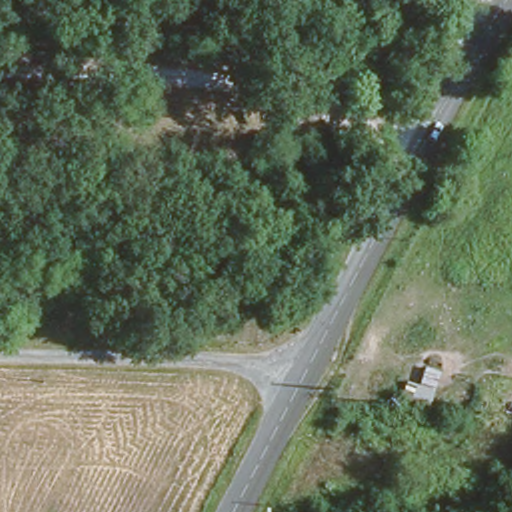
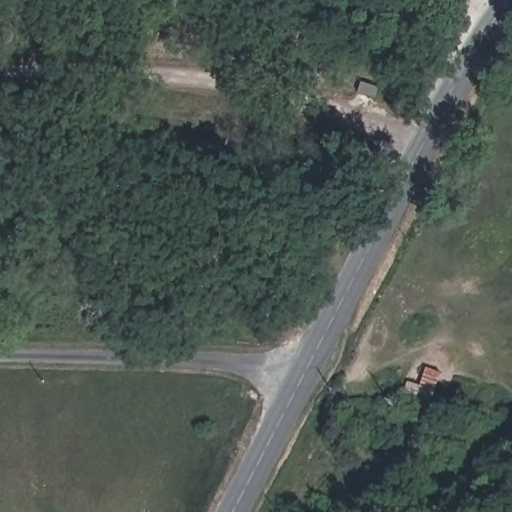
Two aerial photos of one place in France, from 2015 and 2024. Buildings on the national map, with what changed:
unchanged [(430,403),(405,401),(407,379),(419,380),(424,366),(442,370),(430,403)]

